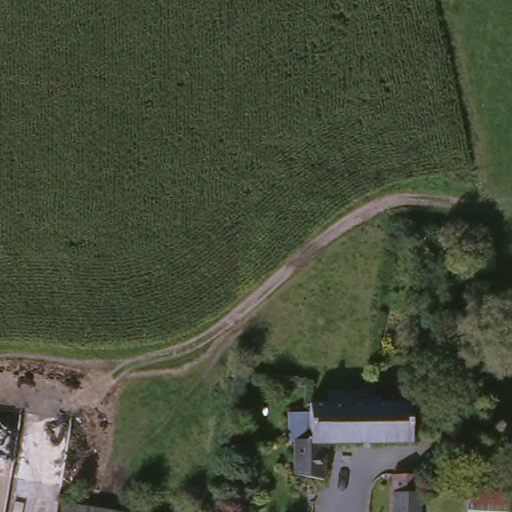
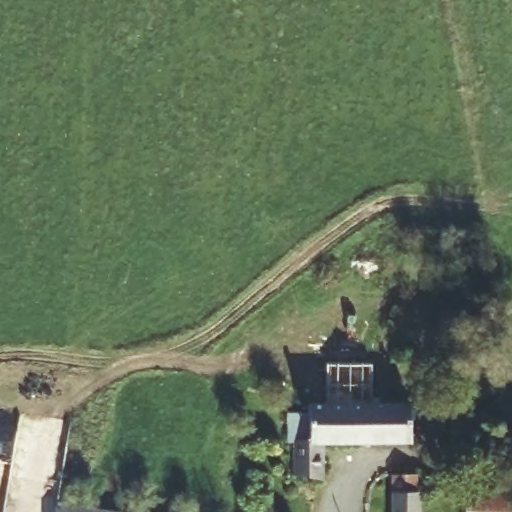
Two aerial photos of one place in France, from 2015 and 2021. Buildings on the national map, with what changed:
unchanged [(309,474),(304,473),(304,442),(296,441),(296,413),(320,413),(321,407),(339,408),(339,393),(384,393),(384,410),(414,411),(416,444),(336,445),(334,475),(325,473),(309,474)]
unchanged [(413,512),(389,512),(386,471),(406,469),(409,468),(413,512)]
unchanged [(460,493),(510,496),(509,512),(459,512),(460,493)]
unchanged [(51,508),(77,512),(51,512),(51,508)]

